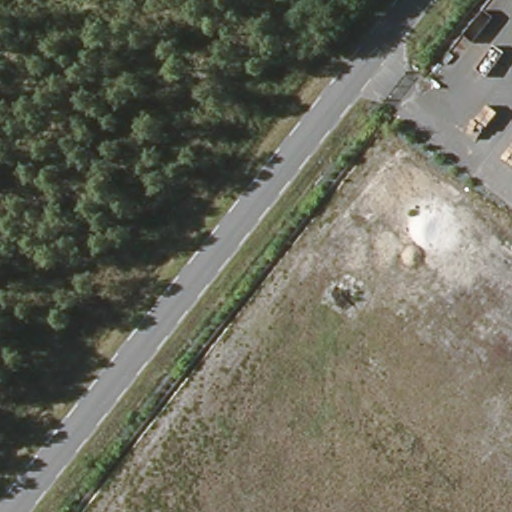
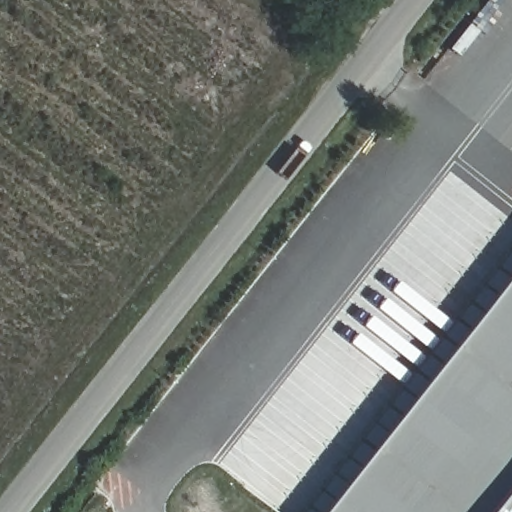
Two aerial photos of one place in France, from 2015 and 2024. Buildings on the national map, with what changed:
new [(322,512),(512,268),(512,512),(322,512)]

